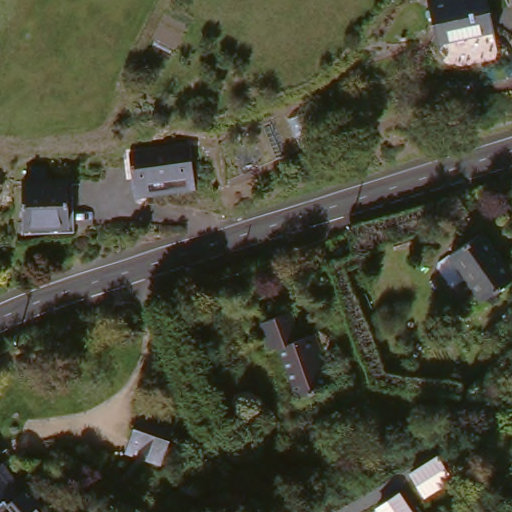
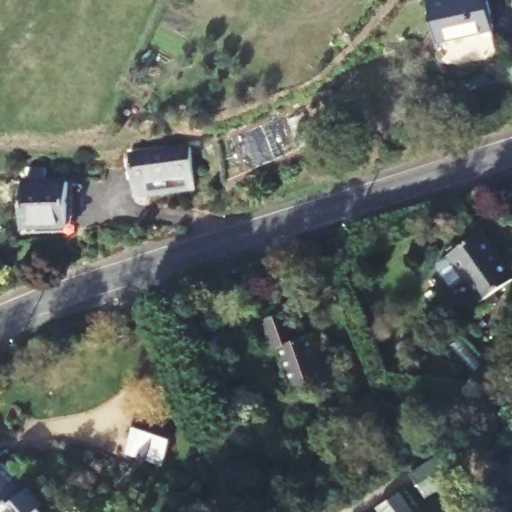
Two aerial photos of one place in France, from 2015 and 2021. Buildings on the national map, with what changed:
unchanged [(469,0),(486,0),(496,32),(443,49),(441,45),(430,13),(469,0)]
unchanged [(189,154),(195,195),(136,203),(132,185),(128,161),(189,154)]
unchanged [(26,193),(26,180),(41,180),(41,194),(61,194),(61,233),(18,233),(18,193),(26,193)]
unchanged [(446,263),(479,239),(512,279),(512,287),(483,309),(446,263)]
unchanged [(279,353),(271,357),(261,331),(291,318),(302,344),(315,339),(335,390),(299,404),(279,353)]
unchanged [(183,426),(171,476),(129,464),(144,416),(183,426)]
unchanged [(0,478),(33,512),(0,512),(0,478)]

